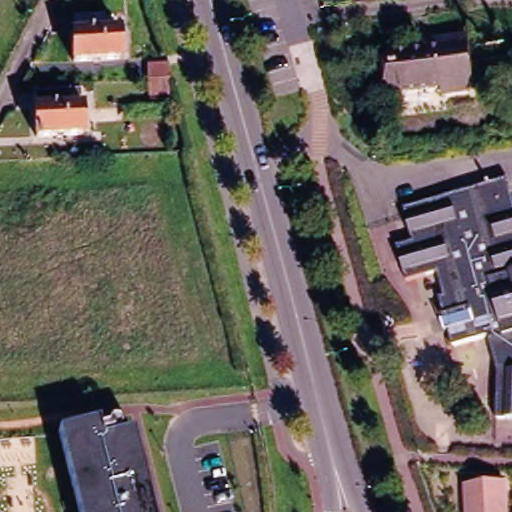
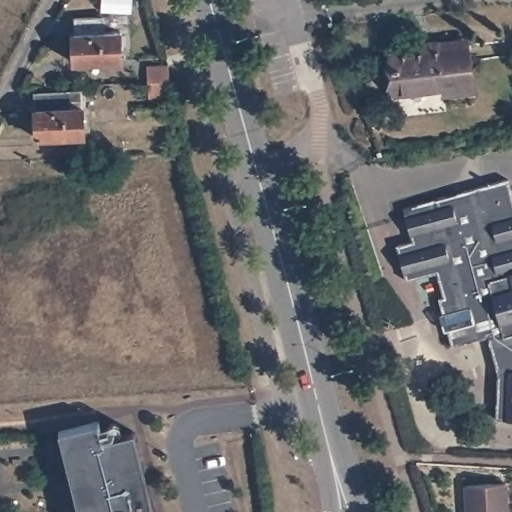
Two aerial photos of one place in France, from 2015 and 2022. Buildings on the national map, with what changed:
unchanged [(67,38),(71,38),(70,21),(107,20),(108,28),(99,28),(100,37),(117,36),(117,64),(67,66),(67,38)]
unchanged [(440,88),(392,95),(388,55),(435,50),(434,44),(460,41),(466,40),(472,90),(467,91),(441,94),(440,88)]
unchanged [(148,70),(168,70),(170,85),(170,100),(148,101),(148,86),(148,70)]
unchanged [(34,91),(81,90),(82,108),(83,108),(84,136),(34,137),(34,91)]
unchanged [(440,298),(447,296),(440,272),(409,280),(399,245),(414,241),(404,207),(508,177),(512,189),(512,417),(497,416),(502,369),(491,334),(455,345),(440,298)]
unchanged [(98,422),(103,440),(134,433),(154,512),(79,512),(58,432),(98,422)]
unchanged [(495,485),(497,512),(466,512),(464,487),(495,485)]

